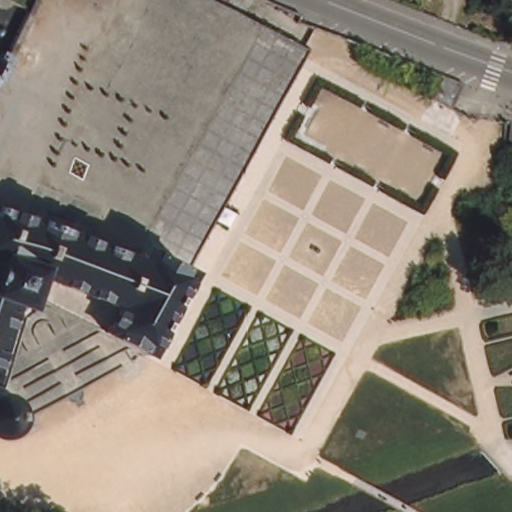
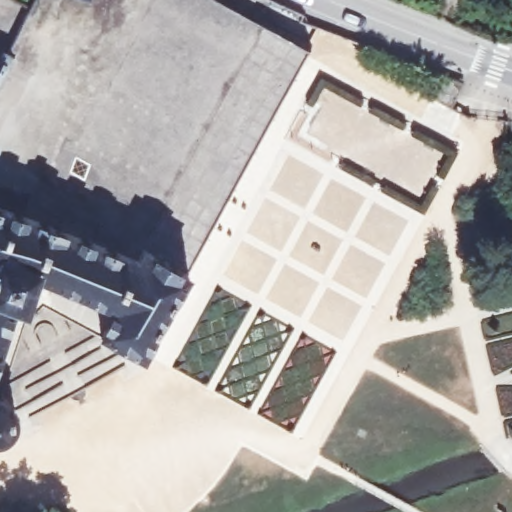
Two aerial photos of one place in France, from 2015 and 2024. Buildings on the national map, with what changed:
unchanged [(465,81),(458,100),(457,103),(440,96),(445,74),(465,81)]
unchanged [(134,254),(145,244),(178,259),(174,268),(185,275),(140,350),(96,326),(106,300),(37,280),(0,361),(0,207),(134,254)]
unchanged [(11,401),(12,414),(10,431),(0,435),(0,396),(11,401)]

